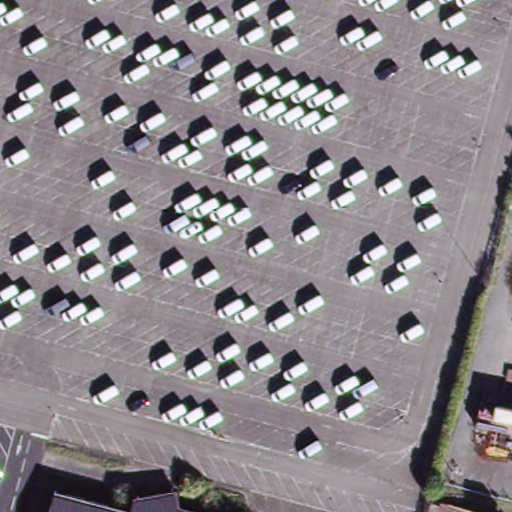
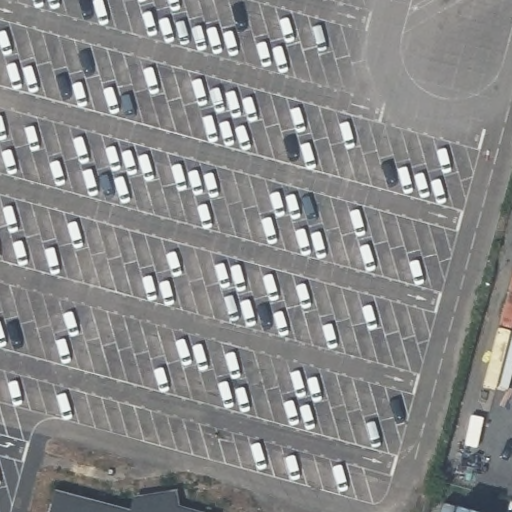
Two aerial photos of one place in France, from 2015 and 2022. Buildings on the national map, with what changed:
unchanged [(130,510),(134,497),(176,489),(179,506),(200,512),(48,512),(55,490),(130,510)]

